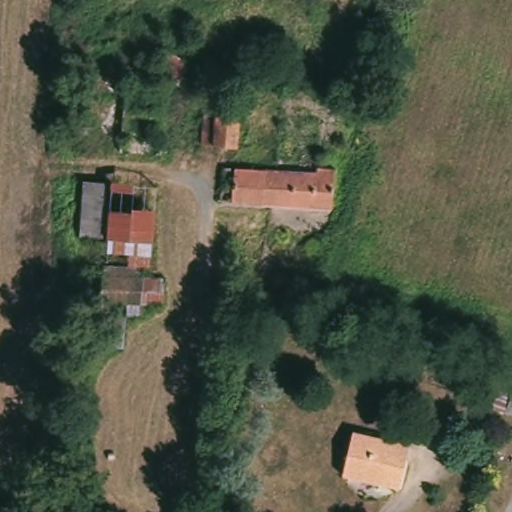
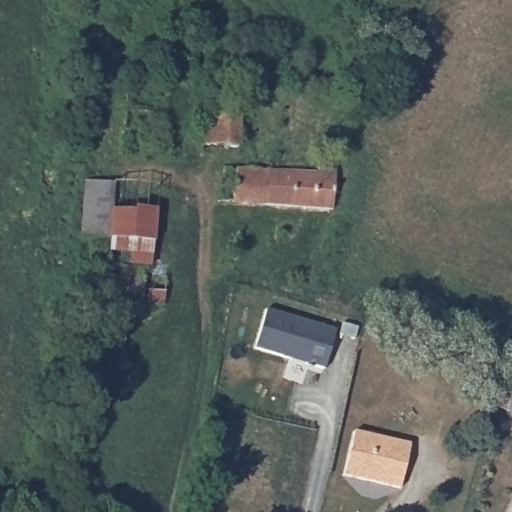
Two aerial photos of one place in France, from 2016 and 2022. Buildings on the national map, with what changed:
unchanged [(168,41),(166,56),(164,78),(131,75),(134,49),(135,37),(168,41)]
unchanged [(125,74),(131,75),(164,78),(195,82),(185,160),(156,156),(161,116),(120,111),(125,74)]
unchanged [(206,148),(201,148),(207,98),(244,102),(242,112),(236,152),(206,148)]
unchanged [(161,116),(156,156),(116,151),(120,119),(120,111),(161,116)]
unchanged [(237,164),(271,168),(266,206),(223,202),(229,163),(237,164)]
unchanged [(280,169),(336,177),(331,214),(266,206),(271,168),(280,169)]
unchanged [(80,261),(83,182),(116,184),(111,262),(80,261)]
unchanged [(155,186),(150,264),(111,262),(116,184),(155,186)]
unchanged [(144,268),(144,278),(159,279),(156,316),(96,312),(99,266),(144,268)]
new [(335,329),(324,368),(255,348),(265,309),(335,329)]
unchanged [(512,421),(493,416),(505,371),(512,373),(512,421)]
unchanged [(401,485),(346,471),(356,427),(412,441),(401,485)]

